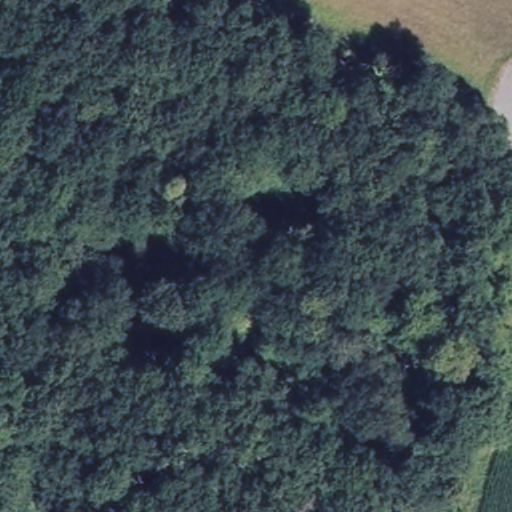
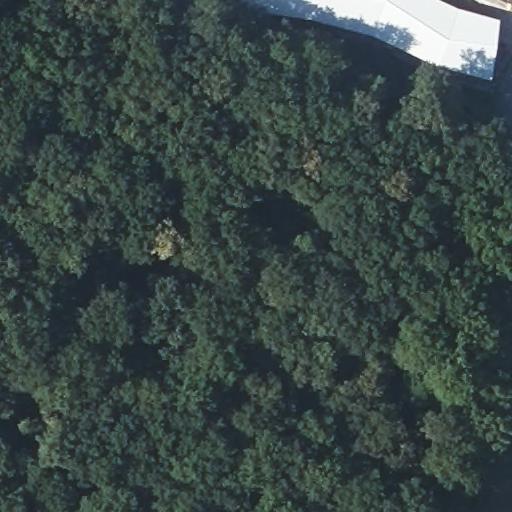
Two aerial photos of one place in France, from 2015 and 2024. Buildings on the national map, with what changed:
new [(456,4),(499,16),(490,77),(450,67),(362,31),(246,0),(446,0),(456,4)]

